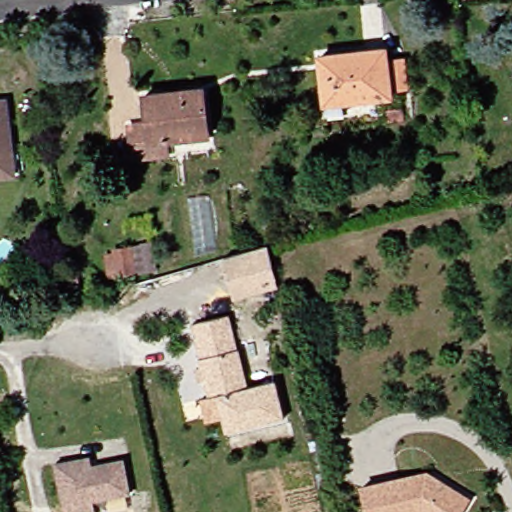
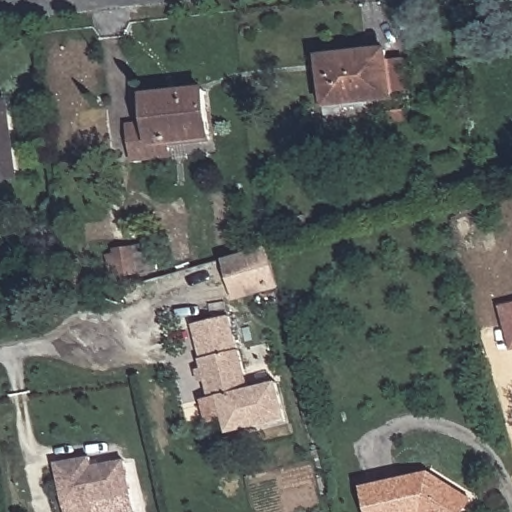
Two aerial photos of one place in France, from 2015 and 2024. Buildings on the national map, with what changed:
unchanged [(331,106),(325,57),(391,49),(392,61),(410,58),(414,90),(396,92),(397,98),(331,106)]
unchanged [(154,125),(151,97),(208,91),(213,137),(165,143),(167,157),(139,160),(135,127),(154,125)]
unchanged [(12,102),(19,176),(0,179),(0,103),(12,102)]
unchanged [(163,271),(110,282),(104,252),(156,242),(163,271)]
unchanged [(283,291),(241,303),(230,263),(266,253),(274,250),(283,291)]
new [(512,302),(512,349),(510,349),(498,306),(512,302)]
unchanged [(207,401),(214,399),(204,360),(207,359),(199,328),(234,320),(242,353),(244,353),(253,391),(280,385),(288,422),(231,435),(227,421),(212,424),(207,401)]
unchanged [(99,469),(131,463),(137,498),(100,505),(101,512),(71,512),(62,467),(97,460),(99,469)]
unchanged [(368,489),(433,473),(474,498),(465,512),(373,512),(368,489)]

